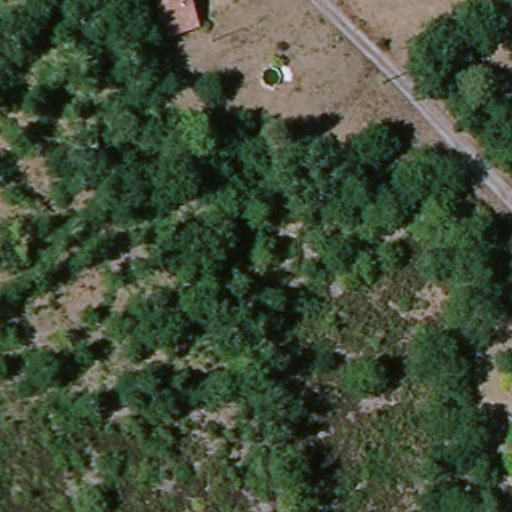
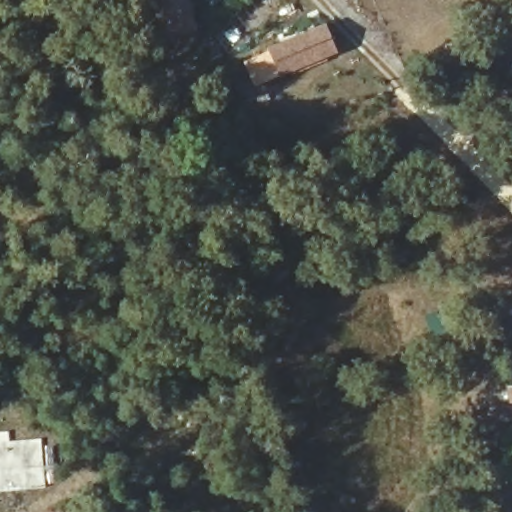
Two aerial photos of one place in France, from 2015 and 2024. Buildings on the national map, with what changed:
unchanged [(159,0),(191,0),(199,24),(173,37),(163,10),(159,0)]
new [(253,0),(265,0),(279,19),(229,54),(213,30),(253,0)]
new [(268,47),(324,22),(339,51),(279,76),(268,47)]
new [(10,440),(43,436),(49,487),(0,491),(0,430),(9,430),(10,440)]

